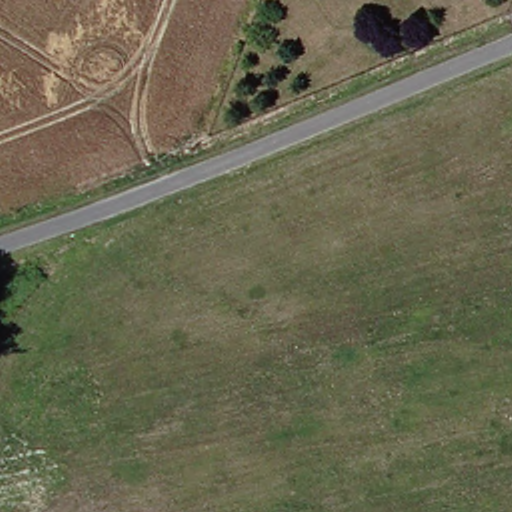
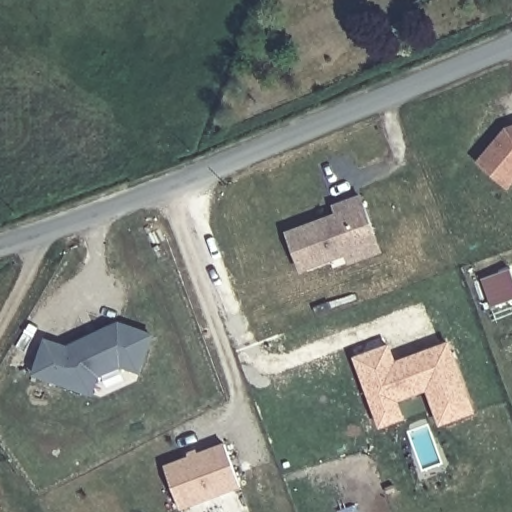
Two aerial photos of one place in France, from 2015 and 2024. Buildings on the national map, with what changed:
new [(512,127),(512,182),(507,188),(477,162),(507,128),(512,127)]
unchanged [(363,194),(385,253),(350,266),(346,257),(302,274),(286,232),(336,212),(333,204),(363,194)]
new [(44,342),(66,348),(117,323),(149,332),(139,369),(118,363),(98,374),(93,392),(35,376),(44,342)]
new [(396,361),(451,341),(477,413),(439,427),(427,393),(401,403),(405,419),(380,428),(354,357),(390,344),(396,361)]
new [(226,444),(242,486),(181,509),(165,466),(226,444)]

